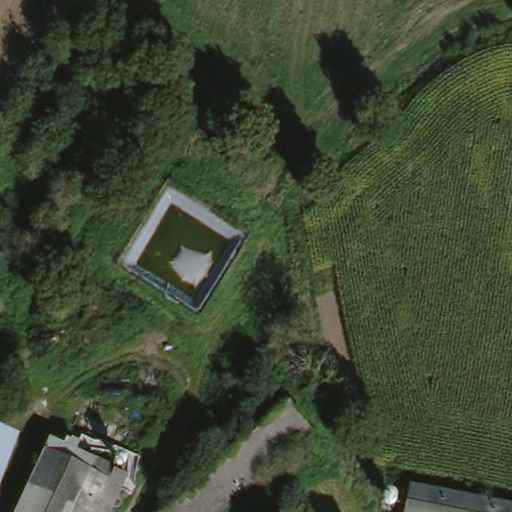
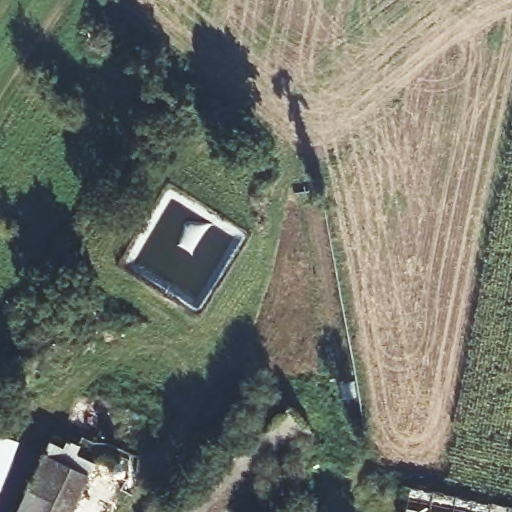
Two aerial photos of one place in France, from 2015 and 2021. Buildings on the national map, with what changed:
unchanged [(319,426),(220,512),(163,512),(297,400),(319,426)]
unchanged [(0,428),(22,437),(0,492),(0,428)]
unchanged [(49,452),(86,469),(66,512),(22,512),(49,452)]
unchanged [(107,512),(66,512),(86,469),(120,485),(107,512)]
unchanged [(512,502),(512,512),(406,512),(412,484),(512,502)]
unchanged [(311,512),(302,512),(309,508),(311,512)]

